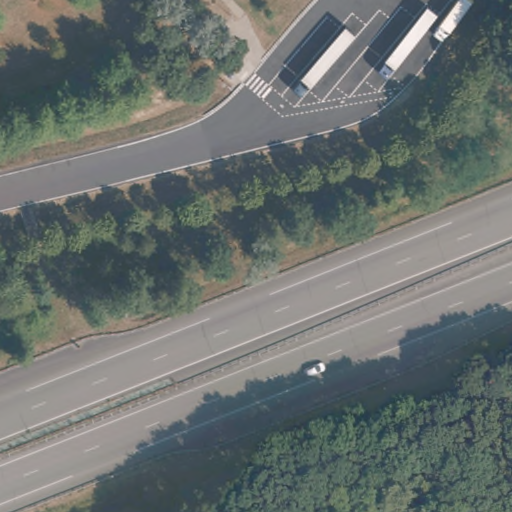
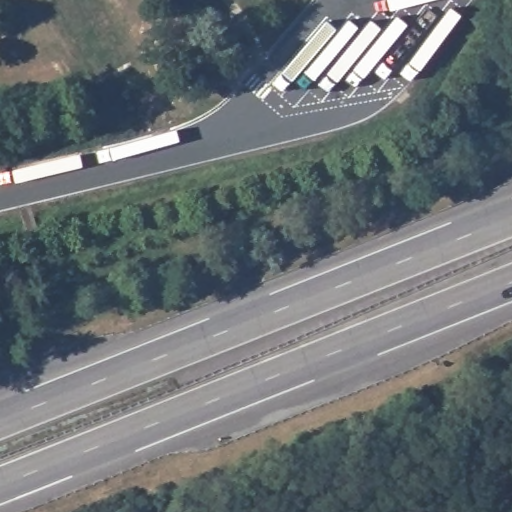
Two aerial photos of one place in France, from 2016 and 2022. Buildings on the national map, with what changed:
[]

